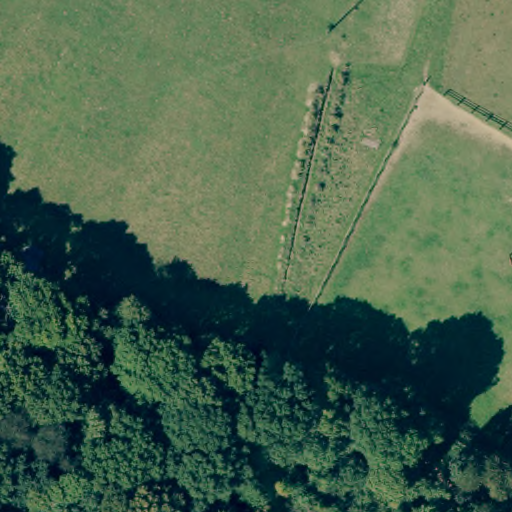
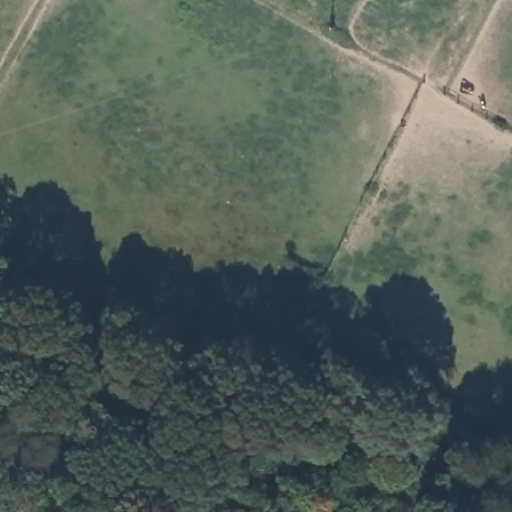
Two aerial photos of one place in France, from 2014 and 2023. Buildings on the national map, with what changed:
[]

